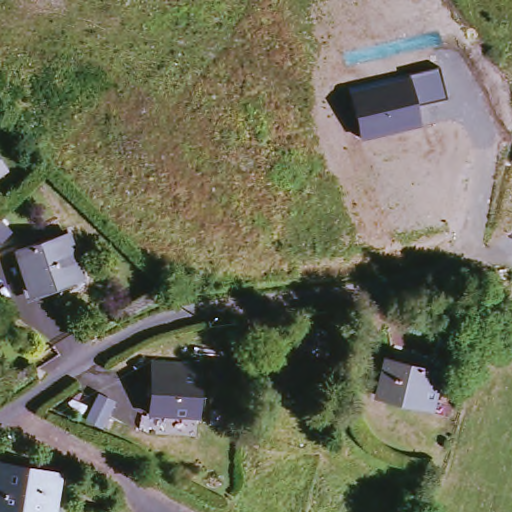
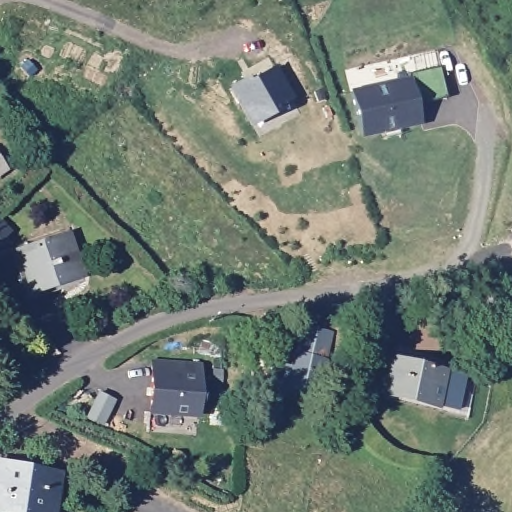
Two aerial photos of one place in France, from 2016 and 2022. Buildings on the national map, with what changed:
unchanged [(350,90),(440,68),(445,99),(417,105),(420,126),(360,140),(350,90)]
new [(226,87),(245,78),(247,81),(264,73),(283,109),(249,129),(226,87)]
unchanged [(0,168),(0,158),(5,163),(0,168)]
unchanged [(55,226),(77,289),(58,295),(54,284),(35,291),(17,240),(55,226)]
unchanged [(313,394),(266,383),(271,365),(288,369),(292,354),(297,354),(303,330),(330,337),(313,394)]
unchanged [(431,410),(375,397),(385,359),(441,371),(431,410)]
unchanged [(197,417),(150,410),(156,368),(157,360),(175,362),(205,366),(197,417)]
unchanged [(0,512),(0,467),(55,476),(49,512),(0,512)]

